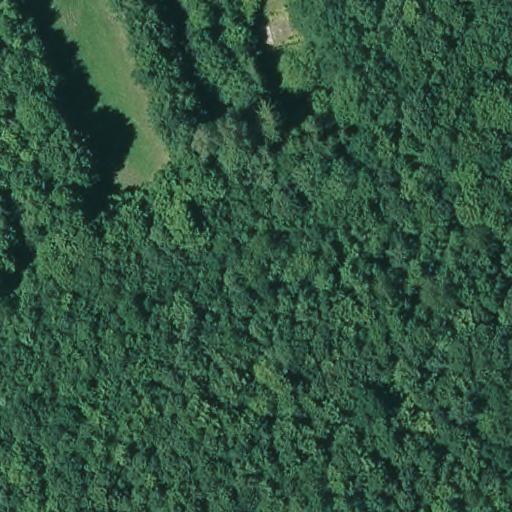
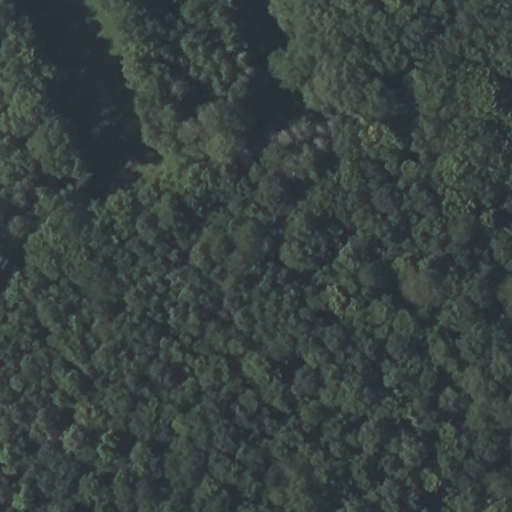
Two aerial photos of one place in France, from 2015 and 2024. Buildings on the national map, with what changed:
unchanged [(288,44),(261,52),(254,26),(281,21),(288,44)]

